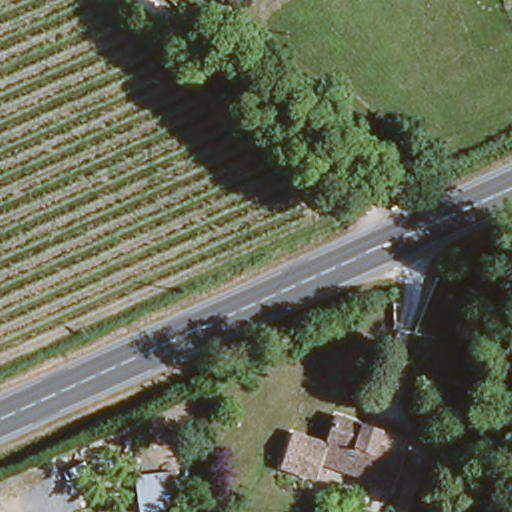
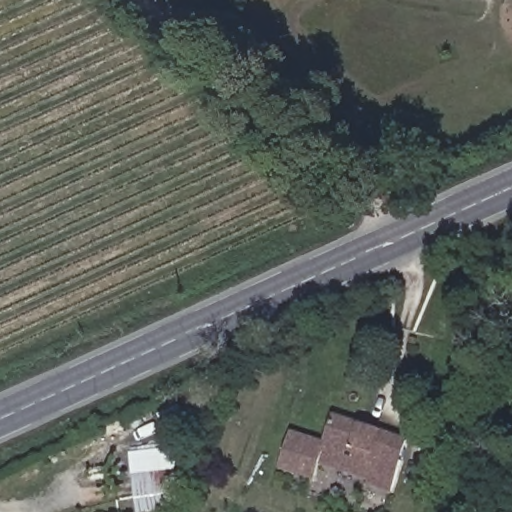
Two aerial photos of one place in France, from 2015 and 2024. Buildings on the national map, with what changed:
unchanged [(357,486),(360,478),(312,464),(329,402),(399,424),(424,432),(416,460),(400,456),(390,487),(388,494),(357,486)]

